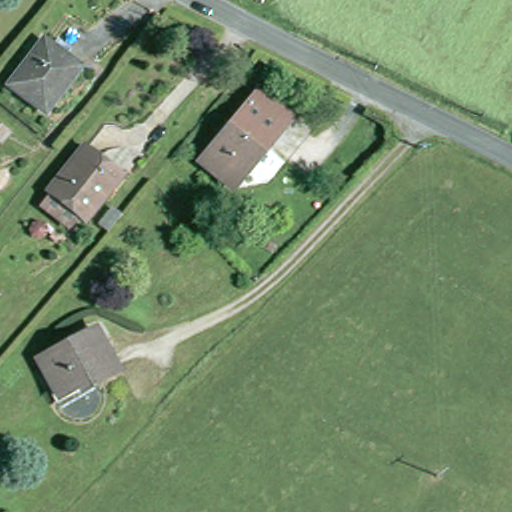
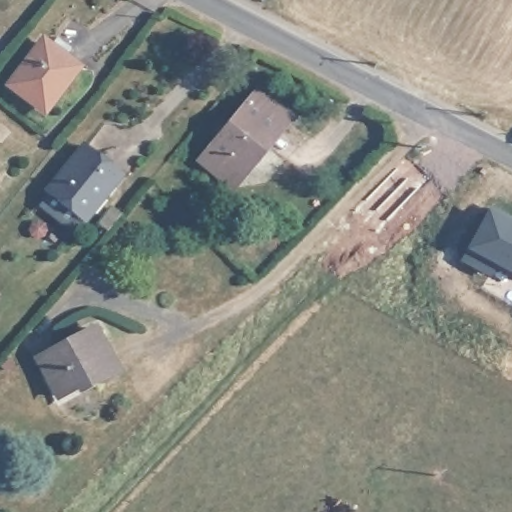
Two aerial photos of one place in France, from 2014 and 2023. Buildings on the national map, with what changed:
unchanged [(44,120),(11,95),(44,53),(50,58),(58,48),(72,59),(64,69),(76,78),(44,120)]
unchanged [(231,196),(200,171),(261,99),(290,123),(266,152),(269,155),(254,174),(253,173),(233,198),(231,196)]
unchanged [(53,203),(90,157),(126,185),(111,203),(106,200),(84,227),(81,225),(73,236),(47,216),(55,205),(53,203)]
new [(496,262),(490,274),(472,265),(469,255),(492,211),(512,222),(512,271),(496,262)]
unchanged [(95,329),(118,371),(96,382),(94,378),(59,398),(38,359),(95,329)]

